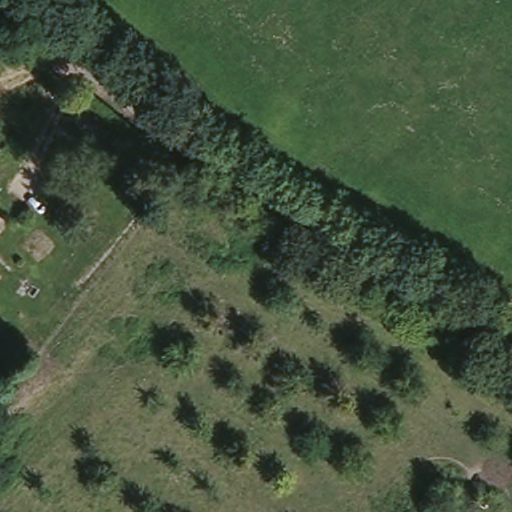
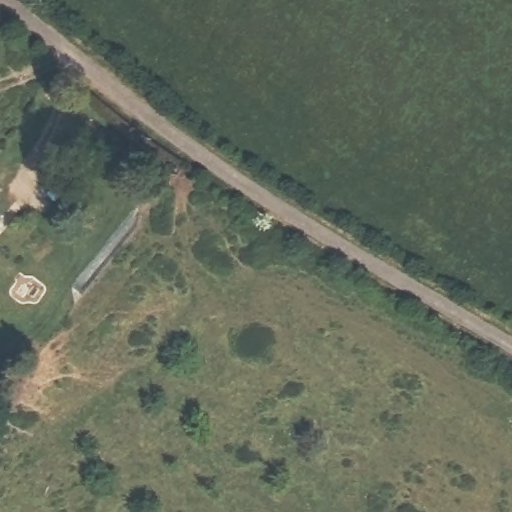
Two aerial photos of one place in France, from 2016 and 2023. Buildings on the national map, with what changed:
unchanged [(5,222),(0,227),(0,218),(5,222)]

